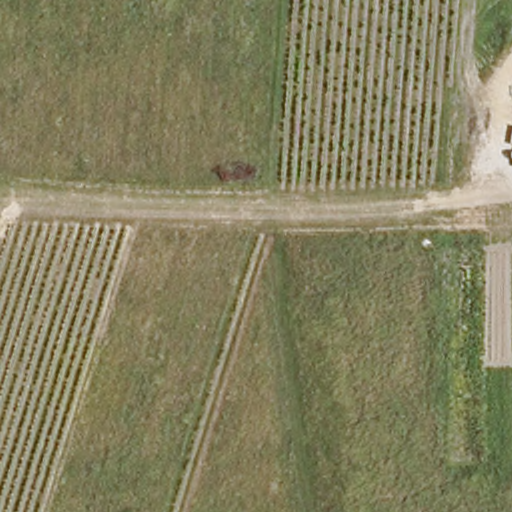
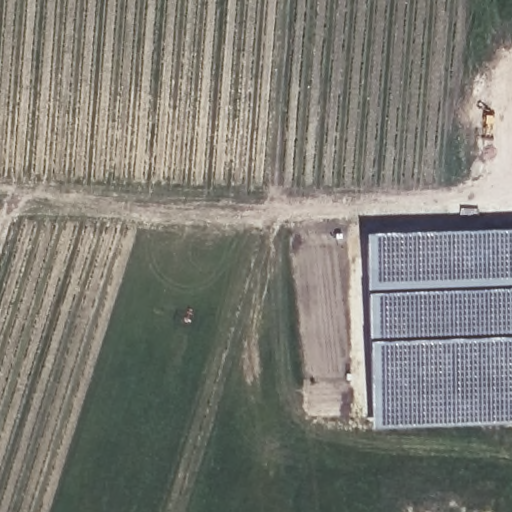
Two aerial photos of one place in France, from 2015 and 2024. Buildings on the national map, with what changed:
demolished [(441,174),(441,167),(440,129),(464,129),(465,168),(465,174),(441,174)]
new [(512,234),(512,426),(370,431),(365,240),(512,234)]

